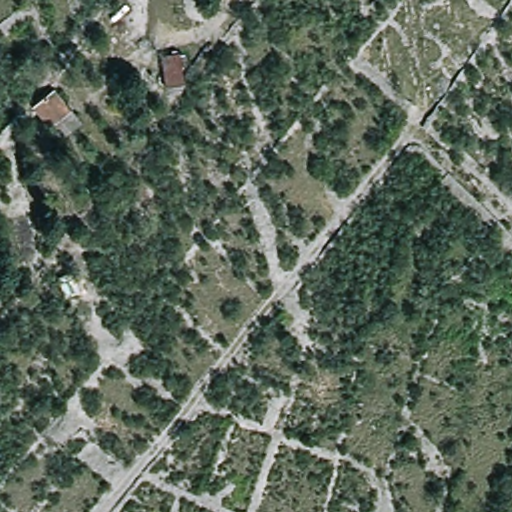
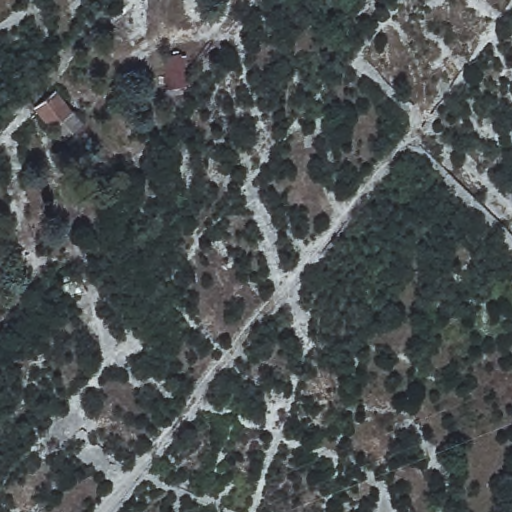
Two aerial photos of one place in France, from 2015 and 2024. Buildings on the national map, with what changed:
unchanged [(35,111),(56,93),(74,115),(52,133),(35,111)]
unchanged [(512,277),(512,286),(508,281),(512,277)]

